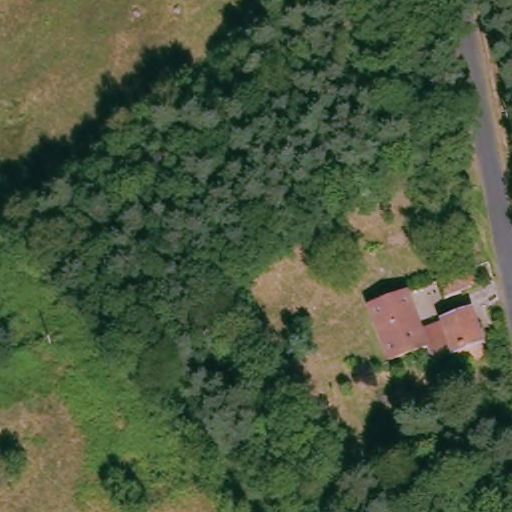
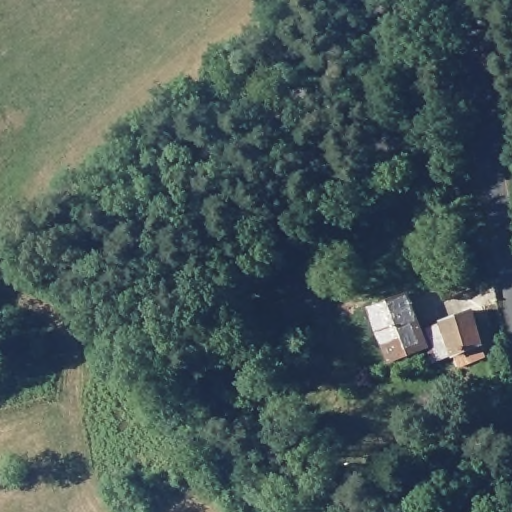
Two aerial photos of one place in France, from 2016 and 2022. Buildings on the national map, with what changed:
unchanged [(462,259),(471,281),(442,296),(431,273),(458,260),(462,259)]
unchanged [(450,371),(440,353),(422,361),(415,344),(384,357),(361,308),(390,295),(407,331),(432,324),(428,317),(455,306),(470,340),(479,357),(450,371)]
unchanged [(467,425),(476,444),(441,460),(433,441),(467,425)]

